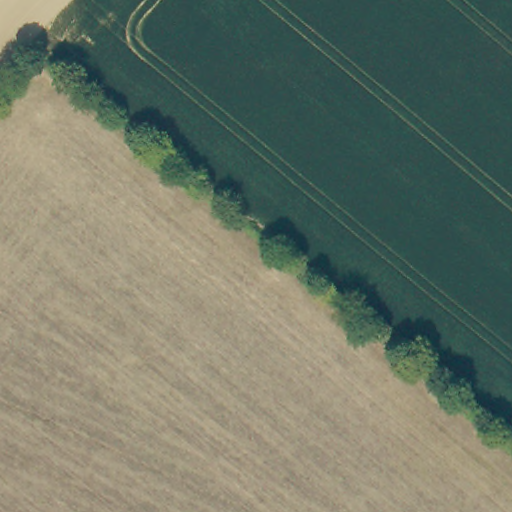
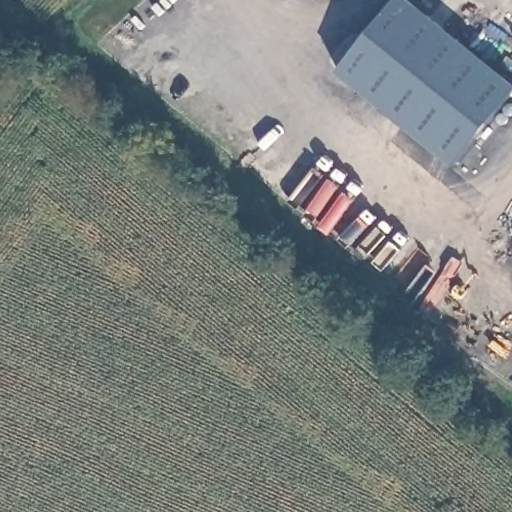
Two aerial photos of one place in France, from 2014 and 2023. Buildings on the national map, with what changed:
new [(338,70),(394,0),(415,0),(512,80),(512,93),(456,166),(338,70)]

